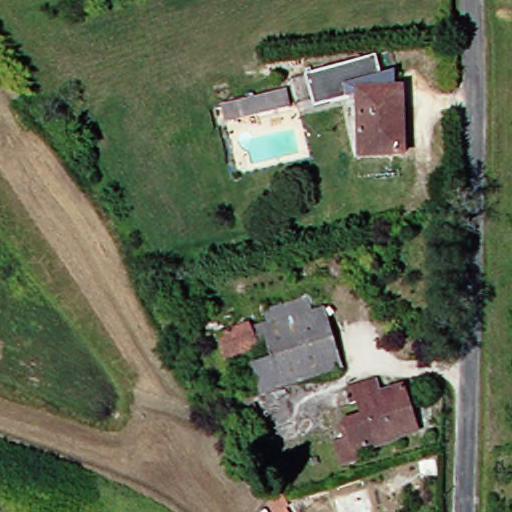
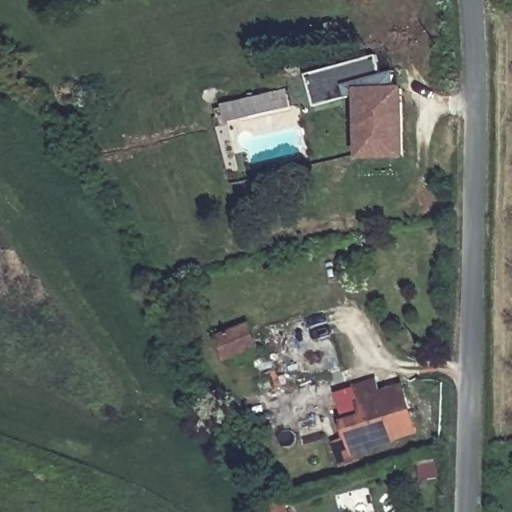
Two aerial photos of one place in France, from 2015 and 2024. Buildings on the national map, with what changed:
unchanged [(402,89),(403,156),(360,157),(358,95),(316,108),(306,77),(377,55),(390,51),(395,71),(396,89),(402,89)]
unchanged [(240,119),(236,103),(287,91),(291,108),(240,119)]
demolished [(346,368),(265,391),(257,364),(279,357),(269,325),(273,324),(327,308),(346,368)]
unchanged [(262,348),(231,360),(221,335),(252,323),(262,348)]
unchanged [(386,394),(408,388),(413,402),(408,404),(417,433),(401,439),(402,441),(363,453),(366,459),(348,465),(341,442),(355,438),(350,422),(368,416),(364,402),(356,404),(352,391),(382,382),(386,394)]
new [(266,501),(281,497),(287,508),(286,509),(287,512),(272,512),(266,501)]

